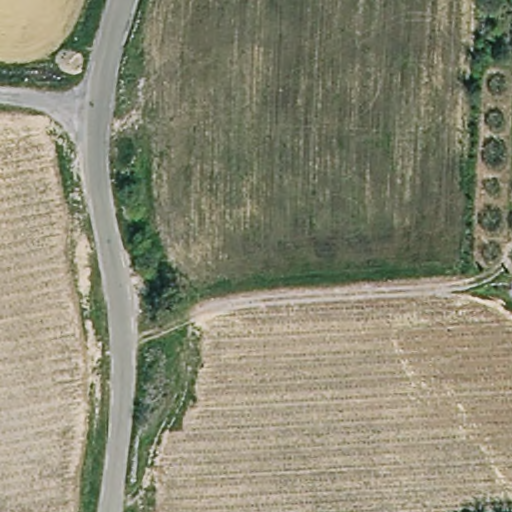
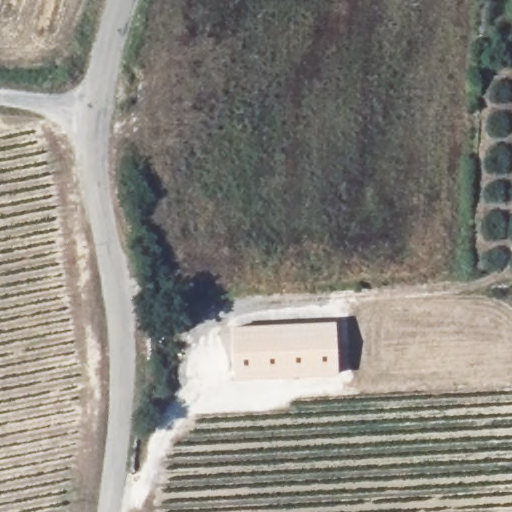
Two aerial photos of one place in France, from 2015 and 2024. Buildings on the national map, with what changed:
new [(337,322),(338,376),(233,380),(231,326),(337,322)]

